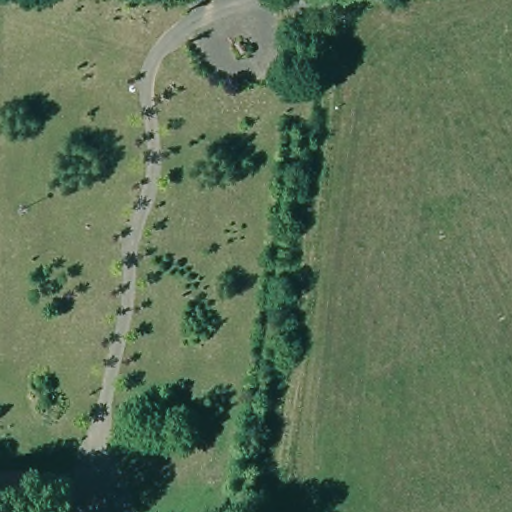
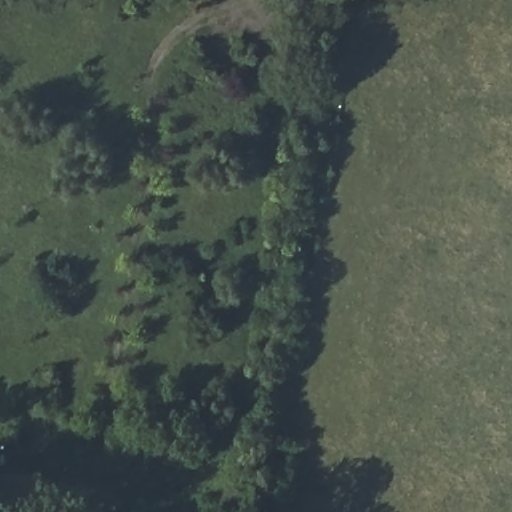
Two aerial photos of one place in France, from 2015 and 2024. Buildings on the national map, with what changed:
unchanged [(30,504),(0,506),(0,477),(30,477),(30,504)]

